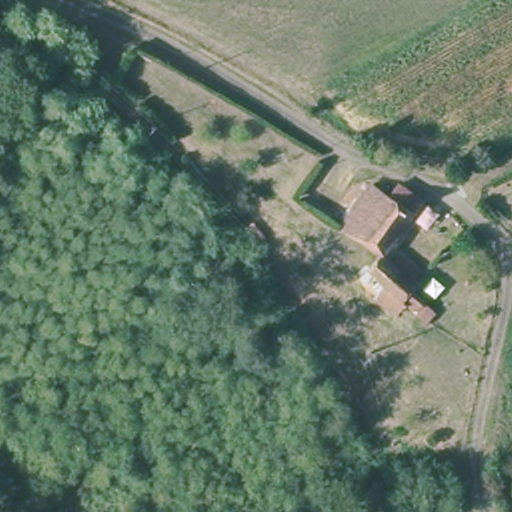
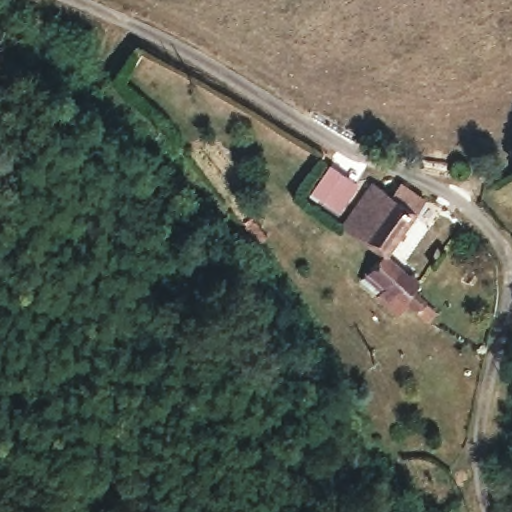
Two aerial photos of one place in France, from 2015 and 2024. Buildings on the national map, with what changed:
new [(330,162),(359,182),(338,213),(309,193),(330,162)]
unchanged [(381,247),(377,253),(342,222),(371,178),(387,186),(401,175),(428,194),(381,247)]
unchanged [(370,289),(372,285),(358,273),(377,253),(381,247),(416,279),(407,289),(417,299),(408,308),(398,300),(391,307),(370,289)]

